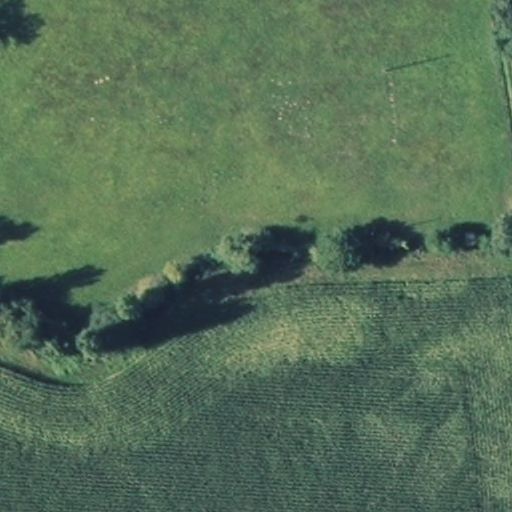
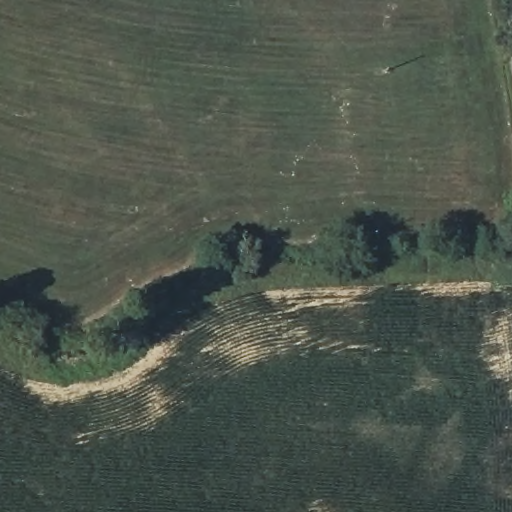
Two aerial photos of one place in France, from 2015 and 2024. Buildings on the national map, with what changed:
[]

